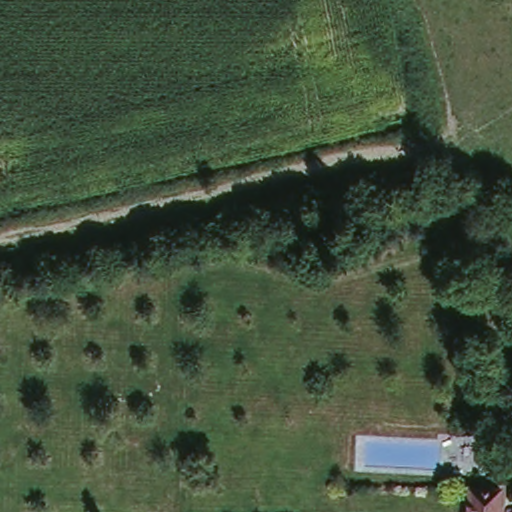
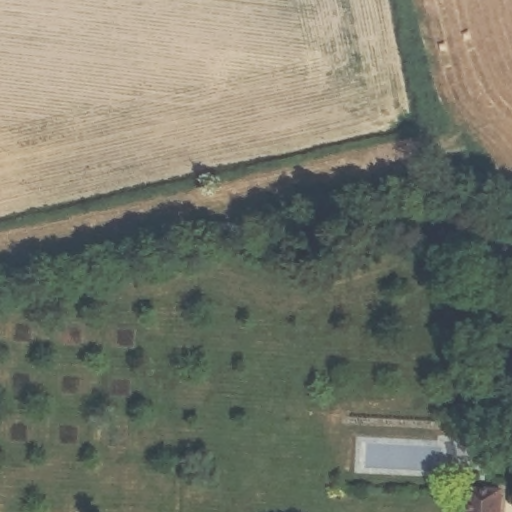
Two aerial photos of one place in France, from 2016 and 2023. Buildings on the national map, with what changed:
unchanged [(503,512),(466,512),(469,485),(505,491),(503,512)]

